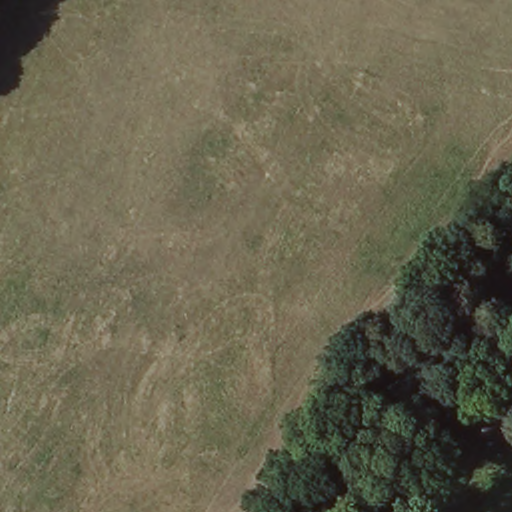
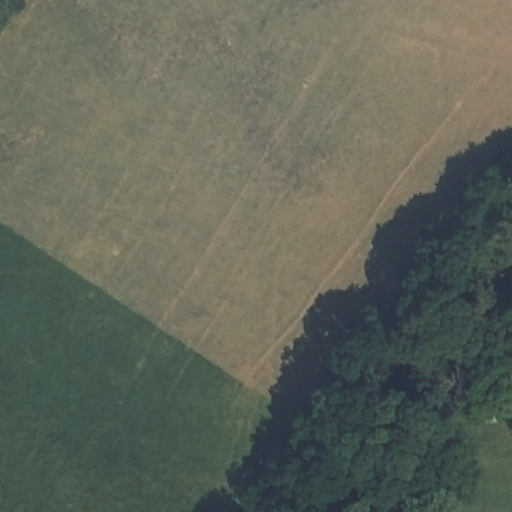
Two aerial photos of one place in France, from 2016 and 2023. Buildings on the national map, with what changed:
unchanged [(423,434),(450,435),(449,464),(423,463),(423,434)]

